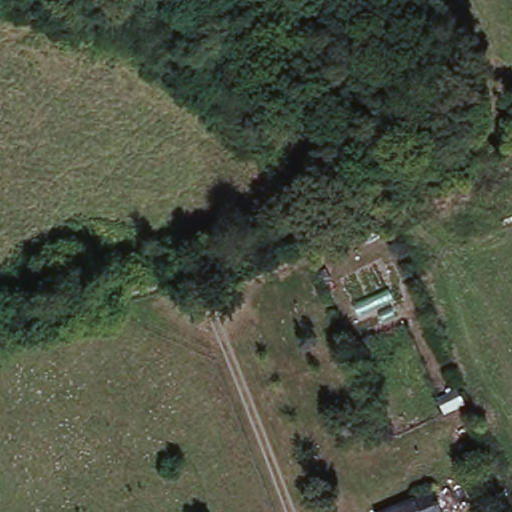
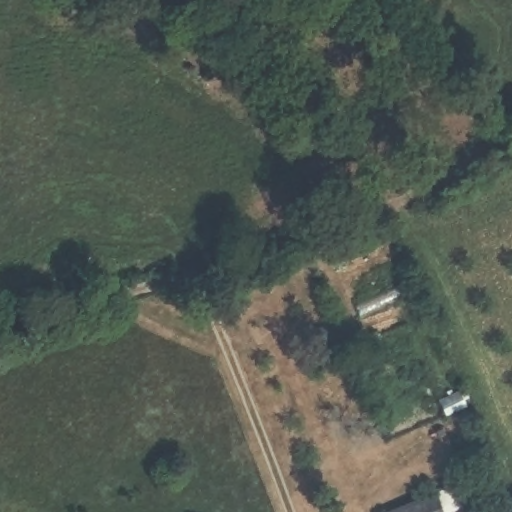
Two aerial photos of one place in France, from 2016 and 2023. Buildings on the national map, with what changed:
unchanged [(440,398),(459,389),(467,405),(447,414),(440,398)]
unchanged [(424,512),(377,512),(417,496),(424,512)]

